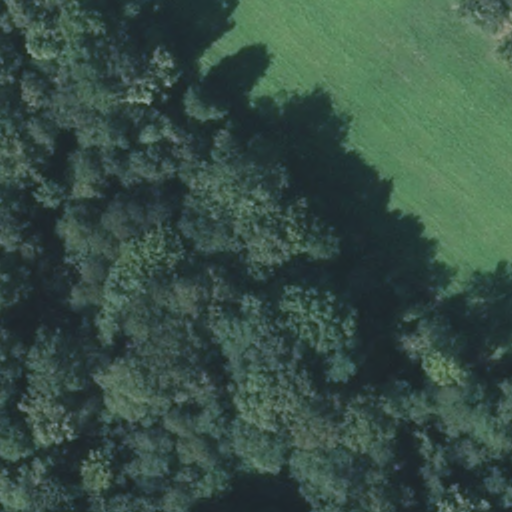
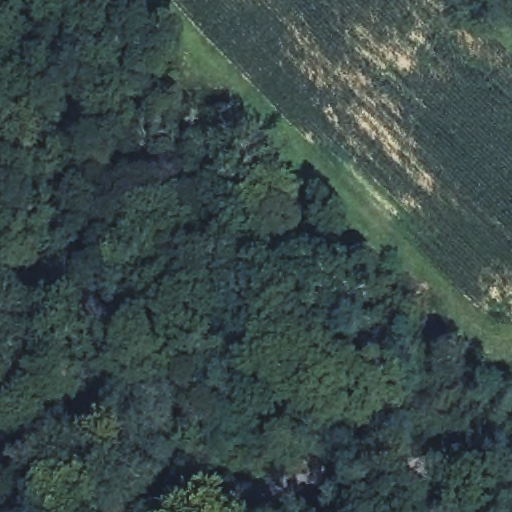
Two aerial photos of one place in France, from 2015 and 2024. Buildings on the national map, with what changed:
[]

